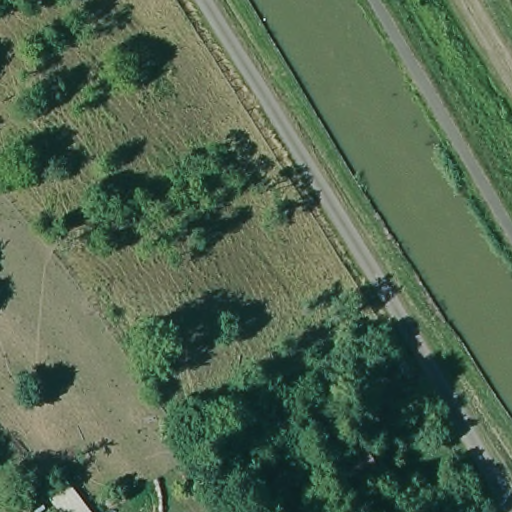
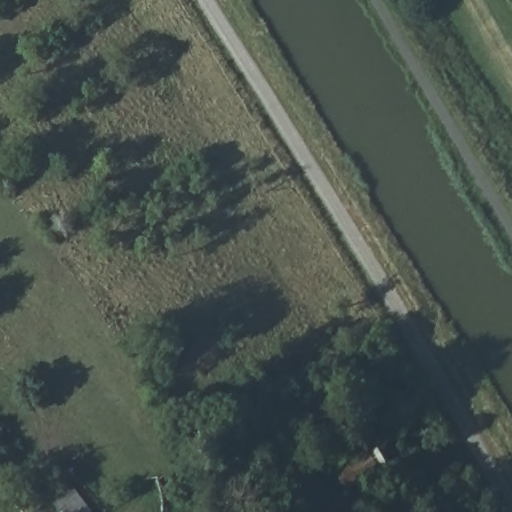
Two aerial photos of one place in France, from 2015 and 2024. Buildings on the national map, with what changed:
unchanged [(340,494),(327,463),(369,448),(380,477),(340,494)]

